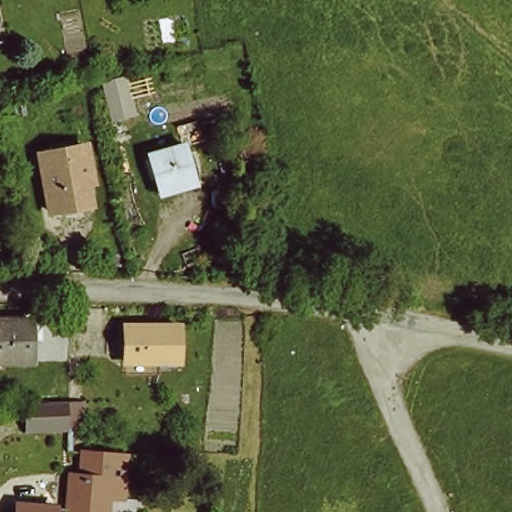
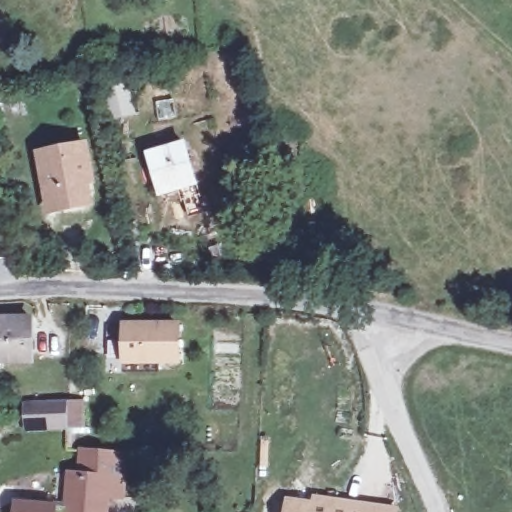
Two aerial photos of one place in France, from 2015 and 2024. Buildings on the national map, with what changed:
unchanged [(85,176),(91,201),(53,211),(40,154),(84,144),(91,174),(85,176)]
unchanged [(160,198),(157,187),(150,159),(184,150),(191,178),(193,188),(160,198)]
unchanged [(35,321),(32,364),(0,362),(0,318),(35,321)]
unchanged [(178,326),(176,362),(124,359),(123,325),(178,326)]
unchanged [(18,432),(17,404),(53,403),(60,403),(78,402),(80,430),(60,431),(45,431),(18,432)]
unchanged [(124,500),(109,500),(109,512),(68,512),(69,480),(80,480),(80,460),(126,463),(124,500)]
new [(287,499),(313,503),(314,496),(400,509),(399,512),(285,512),(287,499)]
unchanged [(62,512),(18,512),(20,498),(63,503),(62,512)]

